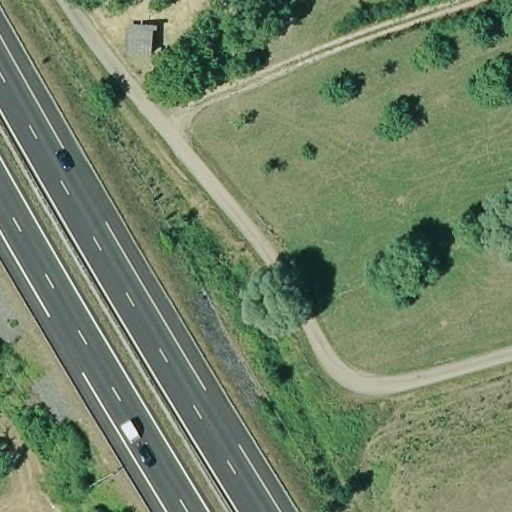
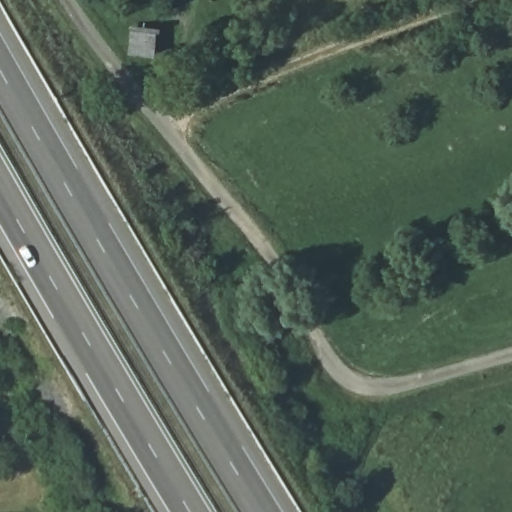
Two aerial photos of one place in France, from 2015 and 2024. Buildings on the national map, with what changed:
unchanged [(151,57),(125,56),(129,28),(156,29),(151,57)]

